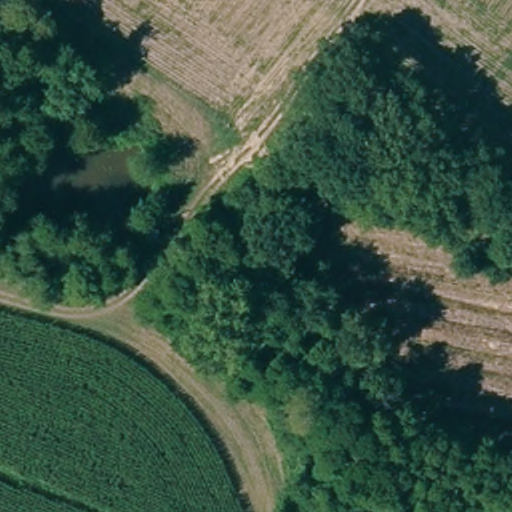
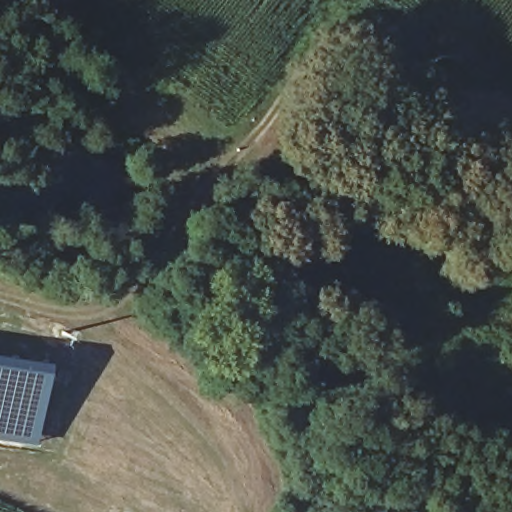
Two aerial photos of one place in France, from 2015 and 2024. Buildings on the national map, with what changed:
unchanged [(143,235),(147,229),(153,232),(148,239),(143,235)]
new [(34,447),(0,442),(0,353),(48,361),(34,447)]

